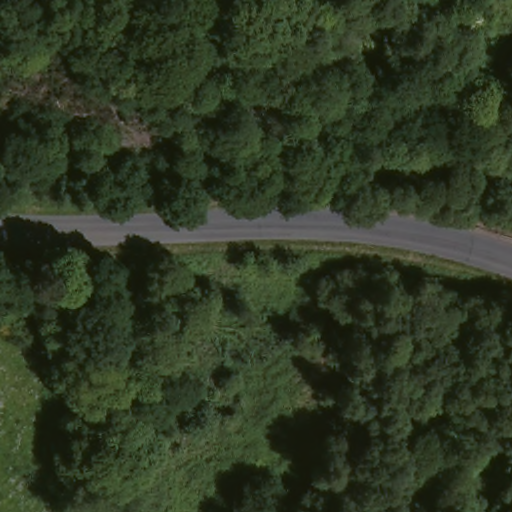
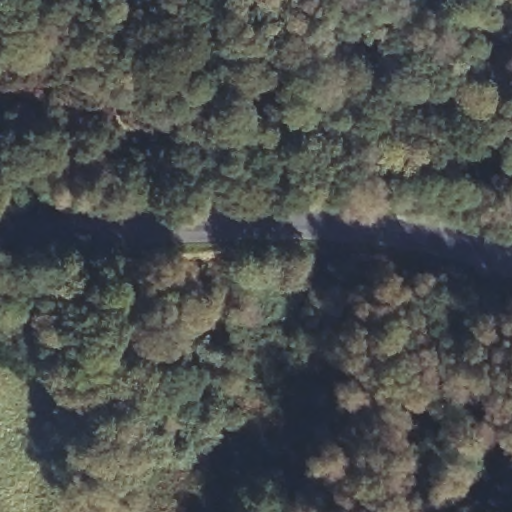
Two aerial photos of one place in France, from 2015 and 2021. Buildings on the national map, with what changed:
[]

